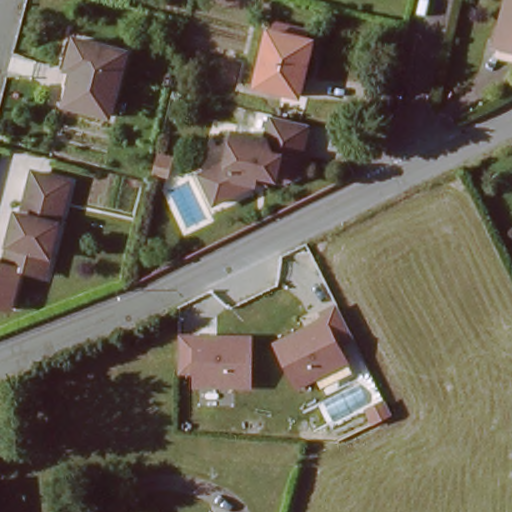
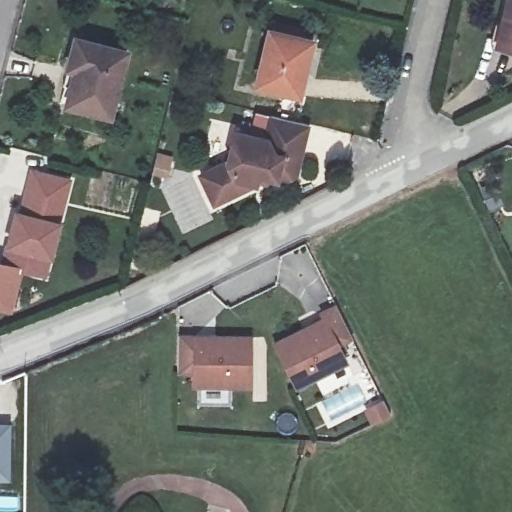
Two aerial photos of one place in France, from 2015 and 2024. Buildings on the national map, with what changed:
unchanged [(512,49),(493,45),(506,0),(512,0),(512,49)]
unchanged [(311,42),(296,97),(253,86),(268,31),(311,42)]
unchanged [(123,50),(107,115),(64,105),(68,87),(58,84),(70,37),(123,50)]
unchanged [(308,126),(296,175),(274,184),(255,180),(252,189),(208,209),(194,172),(223,160),(231,128),(261,136),(266,115),(308,126)]
unchanged [(35,280),(0,270),(14,212),(21,214),(32,171),(72,181),(52,263),(47,282),(35,280)]
unchanged [(298,390),(276,345),(339,308),(354,338),(343,343),(352,363),(298,390)]
unchanged [(252,388),(193,386),(193,372),(180,372),(181,344),(194,345),(195,336),(250,335),(252,388)]
new [(11,422),(11,480),(0,480),(0,422),(11,422)]

